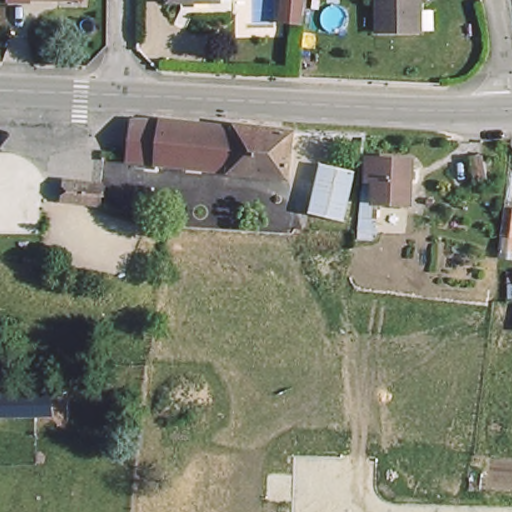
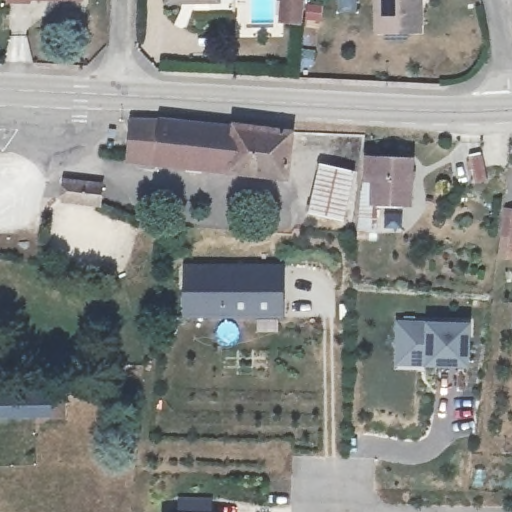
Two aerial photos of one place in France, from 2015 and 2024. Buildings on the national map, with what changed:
unchanged [(303,20),(283,19),(283,0),(305,0),(303,20)]
unchanged [(420,29),(376,29),(377,0),(419,0),(420,29)]
unchanged [(138,115),(156,117),(150,159),(123,155),(128,115),(138,115)]
unchanged [(156,117),(229,127),(231,124),(262,127),(288,130),(282,175),(150,159),(156,117)]
unchanged [(411,158),(409,200),(377,199),(376,234),(370,234),(370,227),(359,226),(363,180),(367,177),(367,156),(411,158)]
unchanged [(354,170),(344,217),(309,209),(321,161),(354,170)]
new [(184,263),(285,263),(284,317),(184,316),(184,263)]
new [(396,365),(396,321),(427,320),(471,321),(470,365),(425,365),(396,365)]
new [(51,391),(52,416),(0,416),(0,392),(51,391)]
new [(212,512),(177,512),(179,497),(213,497),(212,512)]

